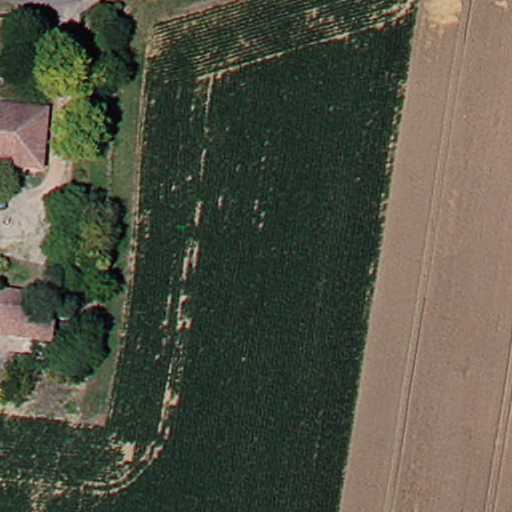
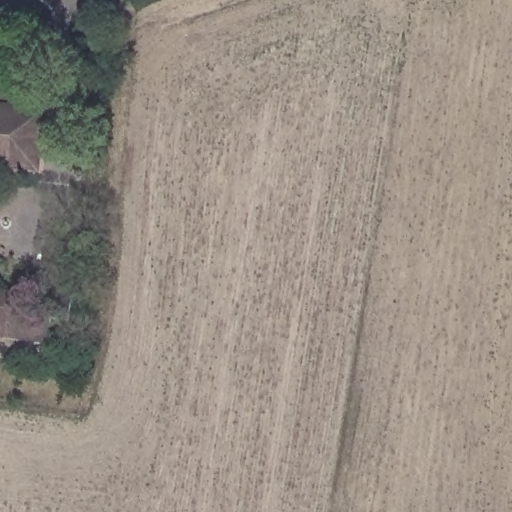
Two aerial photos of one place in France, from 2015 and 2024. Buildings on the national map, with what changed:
unchanged [(43,181),(0,177),(0,93),(51,98),(43,181)]
unchanged [(0,286),(18,287),(15,308),(57,314),(54,347),(0,338),(0,286)]

